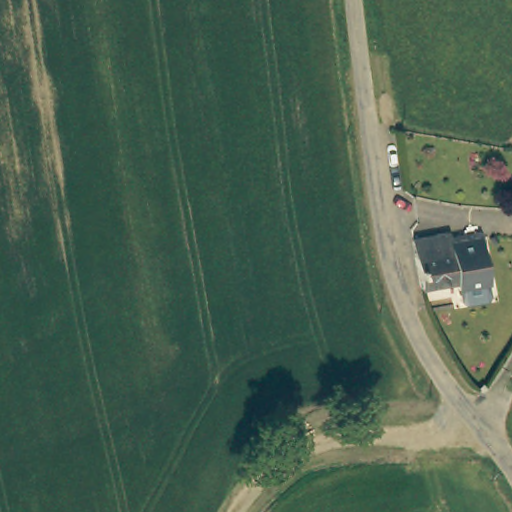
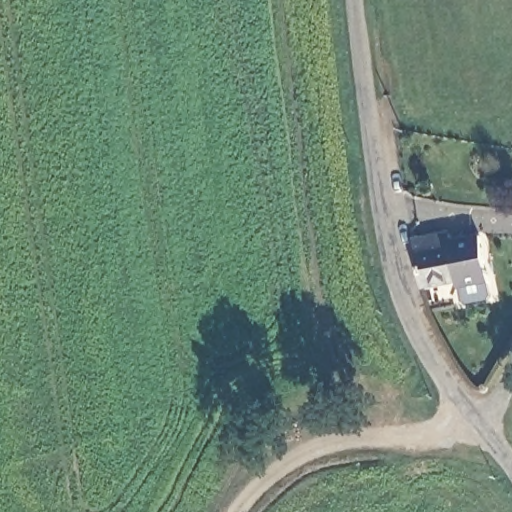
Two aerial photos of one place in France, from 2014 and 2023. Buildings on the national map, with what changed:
unchanged [(490,277),(460,283),(458,276),(424,283),(413,233),(450,227),(452,237),(463,236),(480,234),(482,244),(490,277)]

